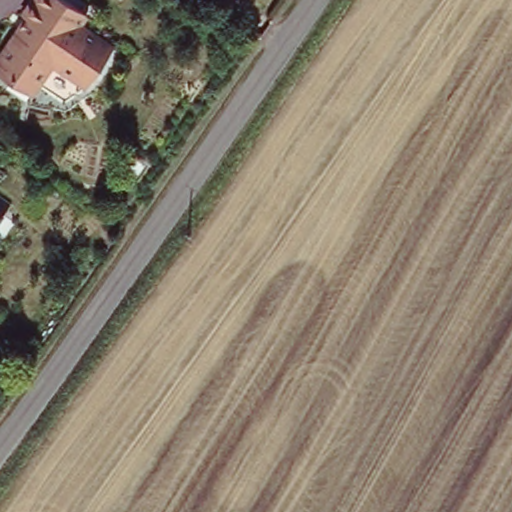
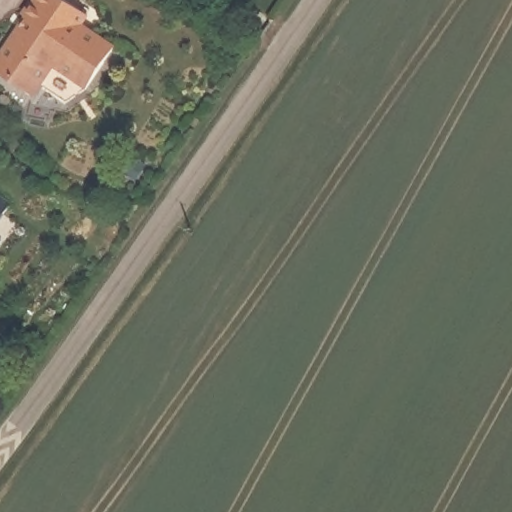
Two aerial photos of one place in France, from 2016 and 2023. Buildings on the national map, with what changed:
unchanged [(0,67),(0,55),(21,26),(28,30),(33,19),(25,11),(33,0),(71,0),(90,13),(83,23),(117,47),(90,83),(56,60),(39,83),(34,89),(14,75),(0,67)]
unchanged [(0,217),(0,215),(1,215),(0,217)]

